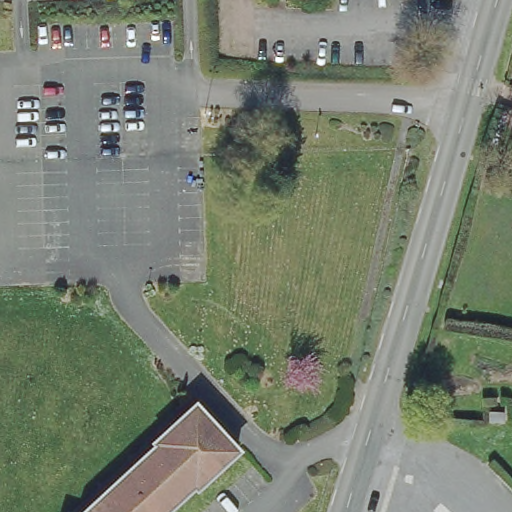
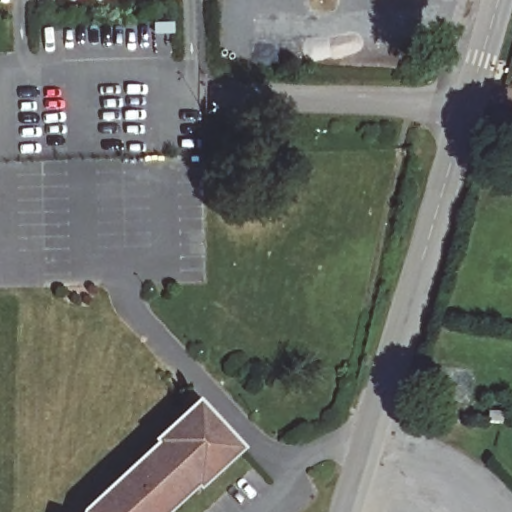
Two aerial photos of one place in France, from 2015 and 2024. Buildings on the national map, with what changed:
unchanged [(160,446),(158,443),(197,408),(238,456),(200,492),(195,486),(168,512),(87,512),(160,446)]

